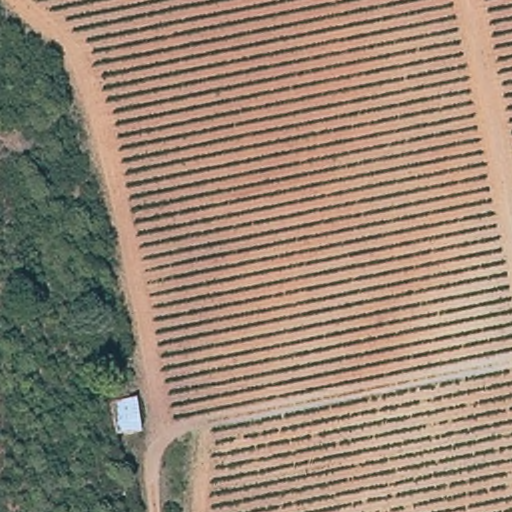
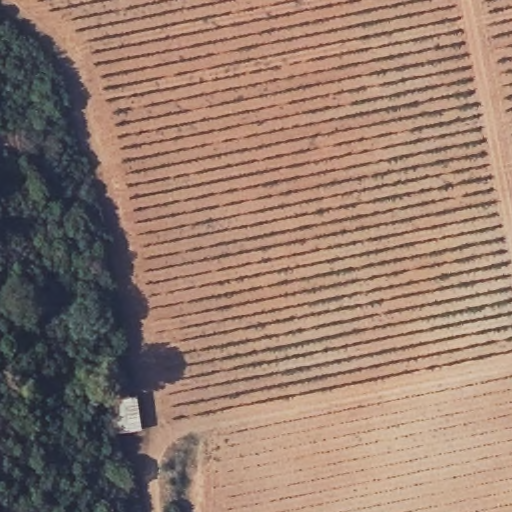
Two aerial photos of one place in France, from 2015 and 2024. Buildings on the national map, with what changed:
unchanged [(132,391),(140,427),(113,432),(105,397),(132,391)]

